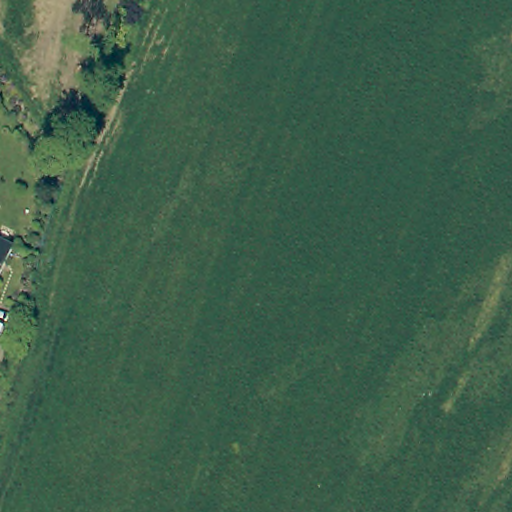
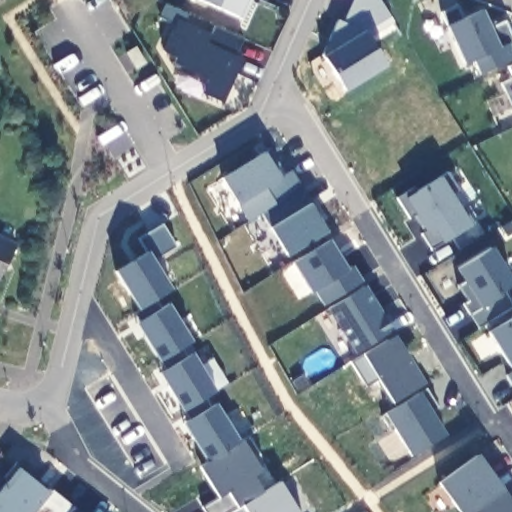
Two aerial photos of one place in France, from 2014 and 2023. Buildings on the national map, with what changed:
new [(245,20),(238,17),(199,0),(253,0),(245,20)]
new [(393,22),(368,37),(386,65),(344,90),(322,55),(337,20),(343,22),(353,0),(380,0),(393,22)]
new [(202,94),(208,79),(174,64),(177,57),(164,51),(175,25),(160,18),(166,5),(187,14),(184,22),(211,35),(216,27),(242,40),(234,56),(242,60),(223,103),(202,94)]
new [(512,61),(480,75),(472,61),(465,65),(447,26),(443,14),(458,7),(466,20),(482,10),(491,29),(506,21),(512,35),(512,61)]
new [(136,68),(126,52),(135,47),(145,62),(136,68)]
new [(512,66),(512,76),(508,68),(512,66)]
new [(512,80),(512,105),(502,85),(512,80)]
new [(249,222),(222,178),(268,149),(279,165),(273,169),(278,178),(291,170),(302,189),(249,222)]
new [(458,190),(450,195),(458,209),(463,206),(474,224),(432,250),(421,234),(427,230),(417,215),(410,219),(397,197),(414,187),(416,191),(448,172),(458,190)]
new [(287,256),(263,215),(304,190),(309,205),(326,232),(287,256)]
new [(115,271),(146,252),(137,239),(162,223),(177,246),(153,261),(171,290),(139,309),(115,271)]
unchanged [(20,245),(1,283),(0,283),(0,234),(20,245)]
new [(346,270),(338,256),(343,254),(351,266),(361,282),(323,305),(315,290),(311,292),(292,262),(328,240),(346,270)]
new [(470,315),(463,304),(463,305),(462,303),(467,300),(457,285),(465,280),(457,268),(490,248),(512,283),(512,285),(504,290),(512,303),(512,309),(488,323),(479,309),(470,315)]
new [(363,286),(391,330),(356,352),(328,308),(363,286)]
new [(155,299),(161,307),(167,303),(192,341),(160,361),(144,335),(147,333),(134,312),(155,299)]
new [(512,317),(512,369),(488,332),(512,317)]
new [(90,340),(111,372),(85,388),(94,402),(119,386),(166,463),(129,486),(89,455),(65,408),(83,338),(90,340)]
new [(393,351),(401,346),(411,362),(402,367),(415,389),(392,403),(378,380),(366,387),(350,361),(386,340),(393,351)]
new [(184,411),(167,385),(171,383),(163,371),(166,369),(160,361),(181,348),(187,356),(192,353),(215,391),(184,411)]
new [(512,372),(512,384),(507,375),(512,372)]
new [(427,388),(438,407),(432,411),(446,435),(412,456),(395,429),(392,431),(382,415),(427,388)]
new [(205,397),(211,406),(215,403),(239,441),(207,461),(191,436),(195,434),(187,420),(189,420),(184,411),(205,397)]
new [(223,493),(217,485),(215,486),(201,465),(249,435),(262,457),(242,470),(257,494),(228,512),(205,512),(202,506),(223,493)]
new [(459,512),(438,483),(477,455),(503,490),(474,512),(459,512)]
new [(0,512),(0,489),(7,480),(4,477),(16,461),(32,475),(29,478),(37,484),(35,486),(46,495),(52,488),(72,505),(67,512),(0,512)]
new [(512,510),(512,512),(474,512),(500,493),(512,510)]
new [(77,512),(67,512),(71,507),(77,512)]

